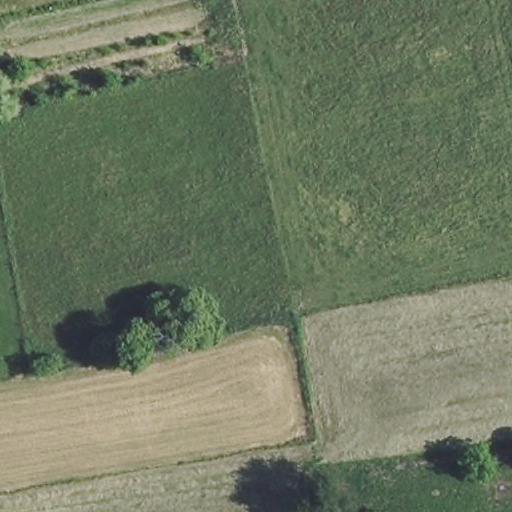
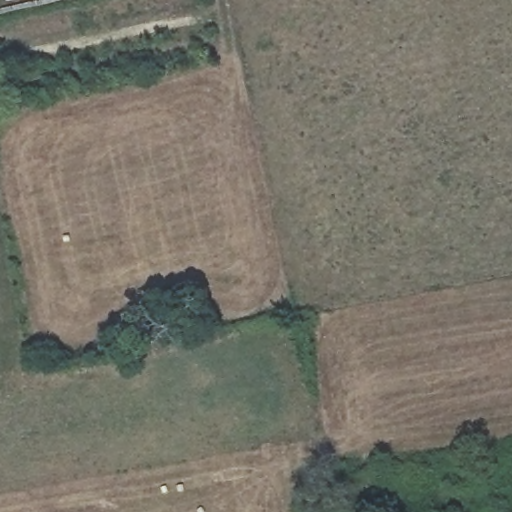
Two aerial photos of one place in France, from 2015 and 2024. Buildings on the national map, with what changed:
[]

